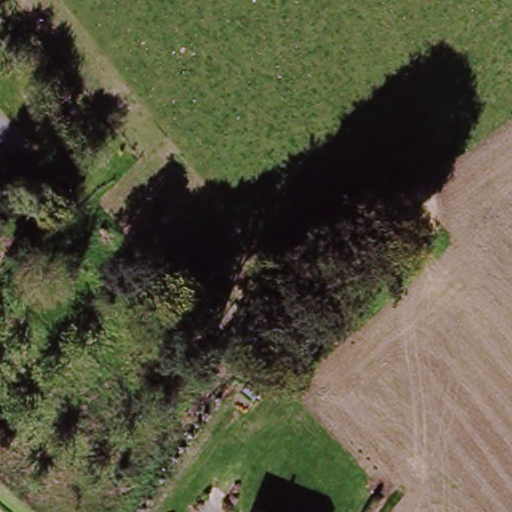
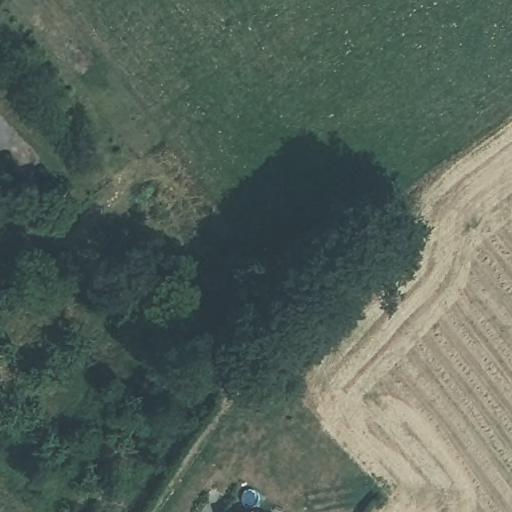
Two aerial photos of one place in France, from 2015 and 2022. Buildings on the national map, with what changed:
unchanged [(271,512),(253,512),(256,506),(271,512)]

